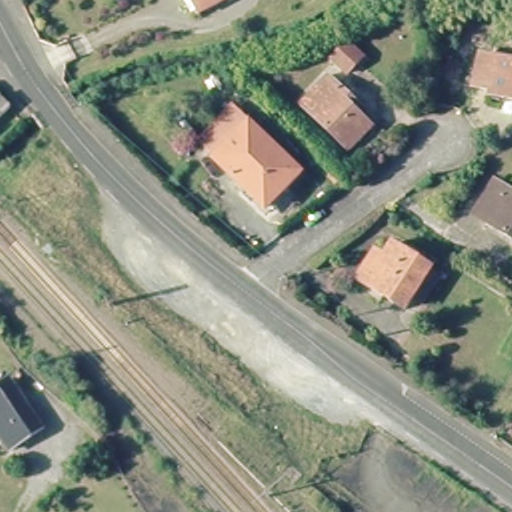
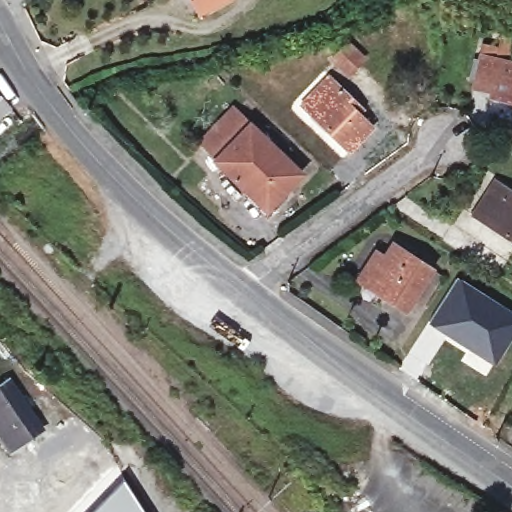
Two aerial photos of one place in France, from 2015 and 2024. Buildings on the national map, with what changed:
unchanged [(190,0),(227,0),(199,16),(190,0)]
unchanged [(345,72),(327,56),(341,41),(359,55),(345,72)]
unchanged [(488,96),(490,90),(472,86),(478,55),(512,62),(512,101),(488,96)]
unchanged [(332,81),(363,112),(360,117),(375,132),(351,156),(304,109),(332,81)]
unchanged [(0,98),(10,110),(0,119),(0,98)]
unchanged [(267,209),(216,157),(251,122),(302,172),(267,209)]
unchanged [(475,215),(495,183),(512,194),(512,239),(475,215)]
unchanged [(405,310),(357,281),(375,253),(384,259),(392,246),(430,269),(405,310)]
new [(457,276),(512,310),(512,337),(493,366),(426,323),(457,276)]
unchanged [(0,425),(0,386),(6,381),(17,395),(19,393),(46,426),(20,448),(0,425)]
new [(124,477),(145,512),(90,512),(124,477)]

